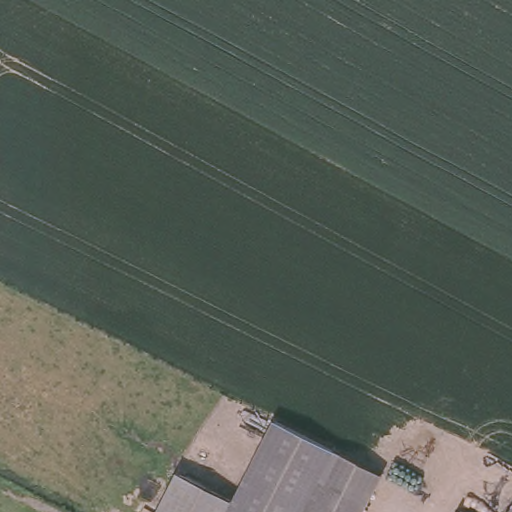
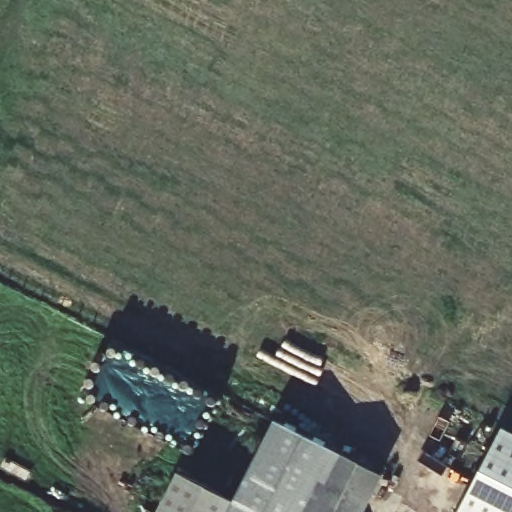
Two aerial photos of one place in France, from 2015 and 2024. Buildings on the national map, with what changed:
unchanged [(238,501),(282,415),(342,445),(388,470),(367,512),(168,512),(186,475),(238,501)]
new [(502,430),(512,434),(512,512),(461,512),(460,511),(502,430)]
unchanged [(461,512),(460,512),(460,511),(461,512)]

